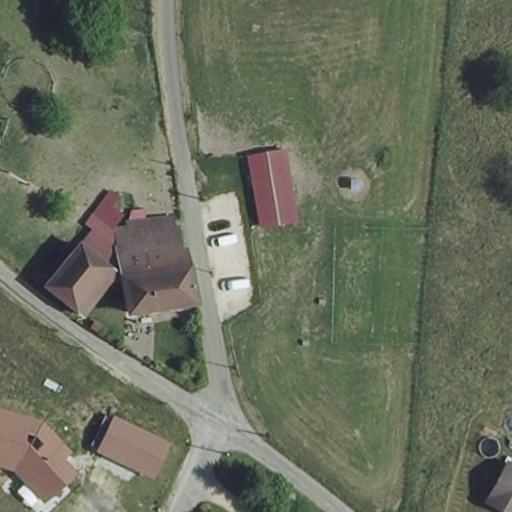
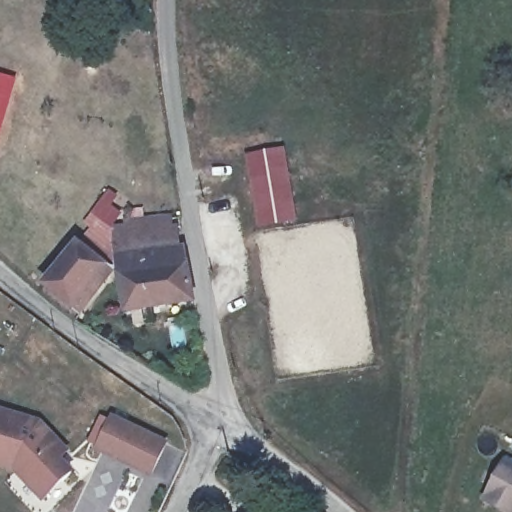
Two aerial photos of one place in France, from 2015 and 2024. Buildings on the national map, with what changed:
new [(18,79),(0,139),(0,74),(18,79)]
unchanged [(285,149),(298,223),(258,230),(245,155),(285,149)]
unchanged [(125,314),(118,281),(88,321),(44,287),(73,242),(80,247),(90,229),(83,223),(105,189),(118,198),(111,206),(129,221),(175,215),(182,247),(188,247),(199,306),(125,314)]
unchanged [(41,423),(67,452),(57,460),(71,475),(43,499),(25,479),(27,475),(10,462),(7,467),(0,465),(0,412),(41,423)]
unchanged [(171,442),(155,478),(95,452),(112,415),(171,442)]
unchanged [(505,459),(512,463),(512,511),(485,497),(505,459)]

